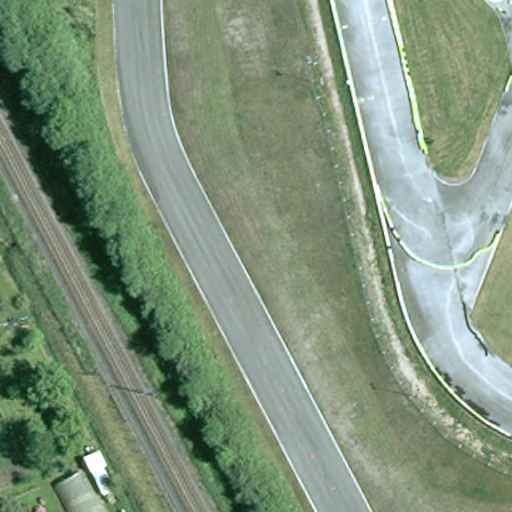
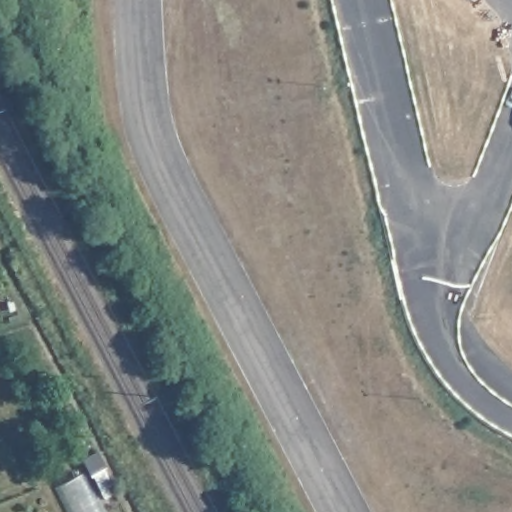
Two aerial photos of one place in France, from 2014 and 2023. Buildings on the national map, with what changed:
[]

